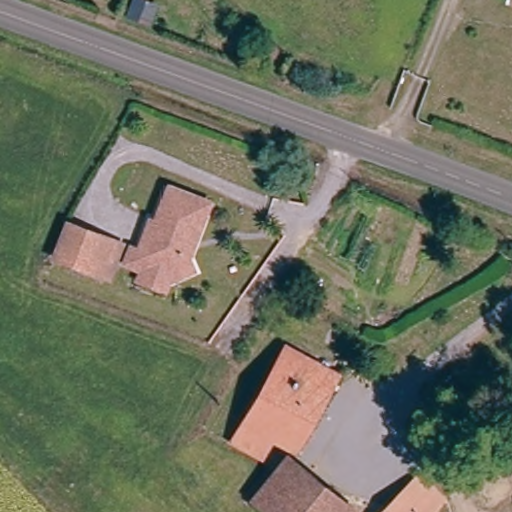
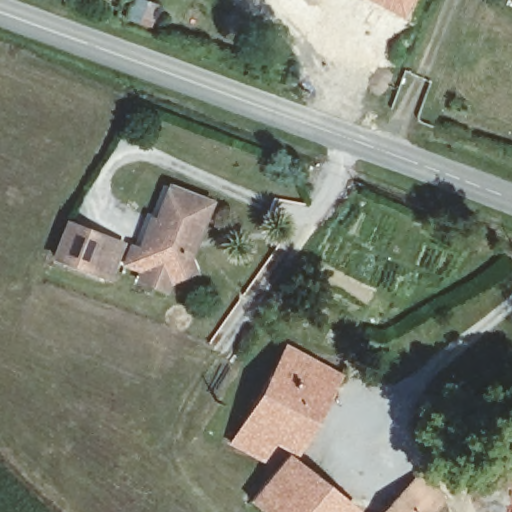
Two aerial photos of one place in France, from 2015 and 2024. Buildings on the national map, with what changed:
new [(401,18),(367,0),(410,0),(401,18)]
unchanged [(509,0),(512,0),(512,3),(508,2),(509,0)]
unchanged [(139,276),(142,267),(122,259),(128,243),(139,246),(150,216),(154,218),(167,182),(209,197),(198,233),(192,233),(187,243),(194,264),(172,276),(168,287),(139,276)]
unchanged [(66,221),(114,238),(102,273),(53,256),(66,221)]
unchanged [(337,371),(296,453),(272,440),(260,459),(232,443),(282,343),(337,371)]
unchanged [(276,472),(288,456),(356,509),(353,512),(265,512),(254,503),(276,472)]
unchanged [(434,493),(440,498),(427,512),(380,512),(415,475),(434,493)]

